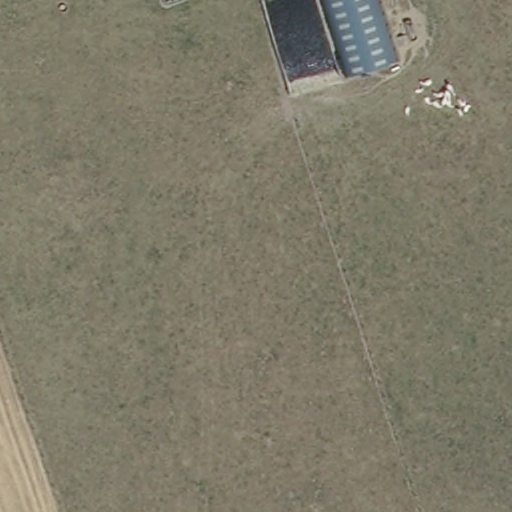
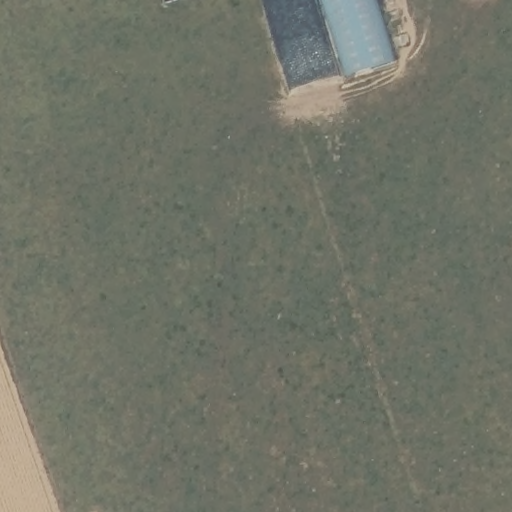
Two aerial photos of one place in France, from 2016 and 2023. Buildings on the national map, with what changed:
unchanged [(341,75),(320,0),(377,0),(396,60),(341,75)]

